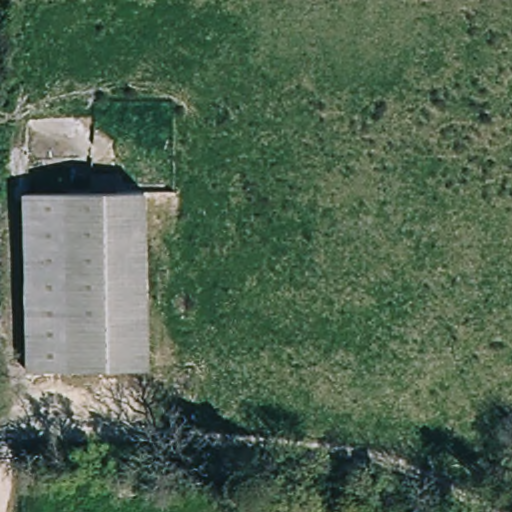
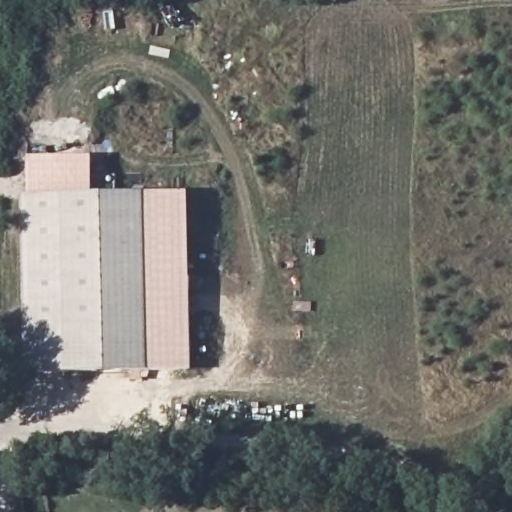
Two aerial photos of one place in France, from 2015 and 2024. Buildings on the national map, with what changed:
new [(28,156),(92,154),(93,191),(27,192),(28,156)]
new [(188,190),(192,368),(146,370),(146,191),(188,190)]
unchanged [(146,370),(28,370),(27,192),(146,191),(146,370)]

